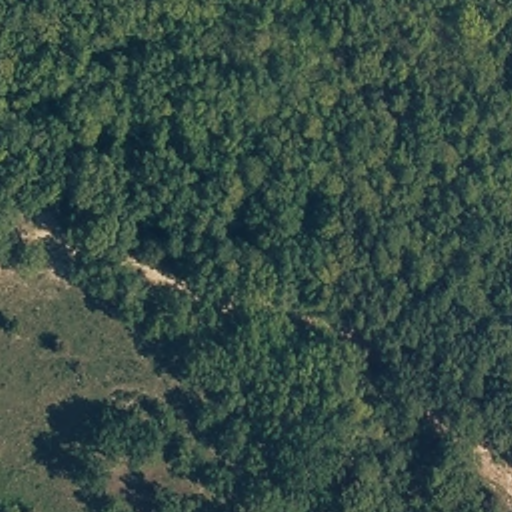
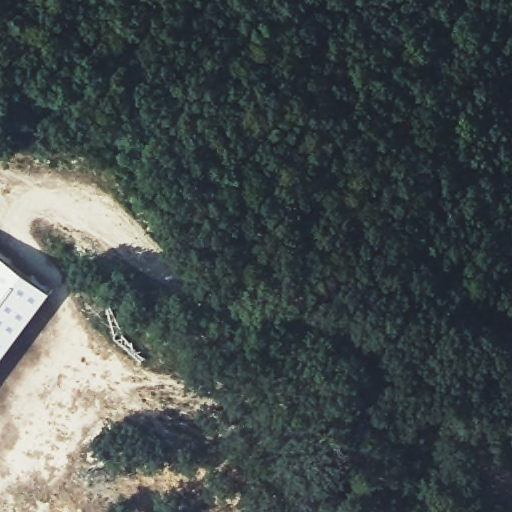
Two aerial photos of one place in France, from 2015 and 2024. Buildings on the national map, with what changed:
new [(49,290),(0,356),(0,254),(49,290)]

